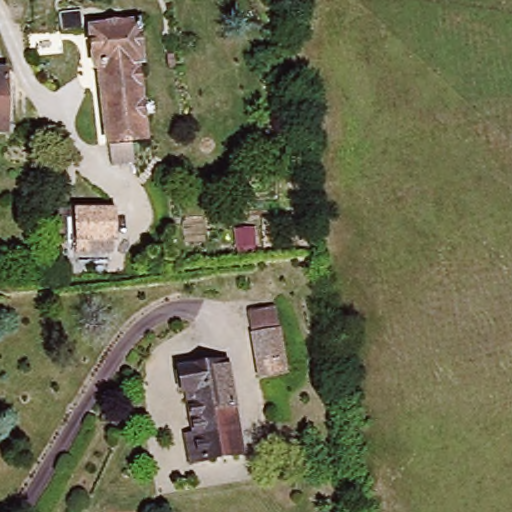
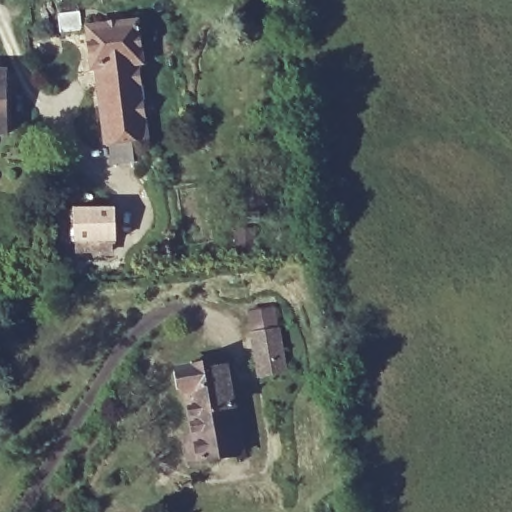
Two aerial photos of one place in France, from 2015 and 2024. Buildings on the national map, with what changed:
unchanged [(84,31),(62,32),(60,16),(81,15),(84,31)]
unchanged [(141,64),(136,65),(145,140),(106,143),(98,68),(91,69),(87,31),(137,25),(141,64)]
unchanged [(6,136),(0,136),(0,74),(5,74),(6,136)]
unchanged [(75,258),(75,239),(55,239),(56,207),(116,208),(117,239),(116,256),(75,258)]
unchanged [(285,360),(256,364),(249,325),(278,320),(285,360)]
unchanged [(199,461),(186,390),(180,390),(177,370),(224,362),(243,452),(199,461)]

